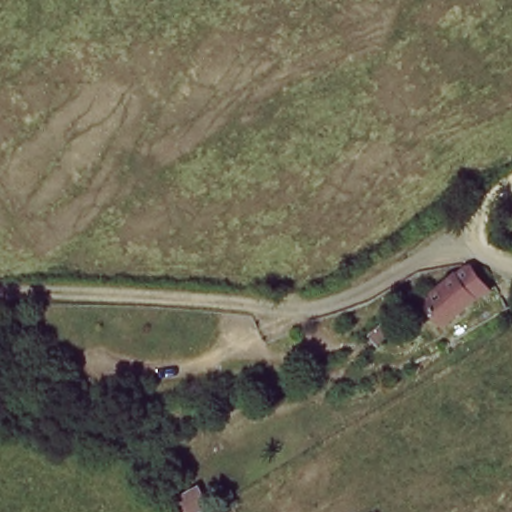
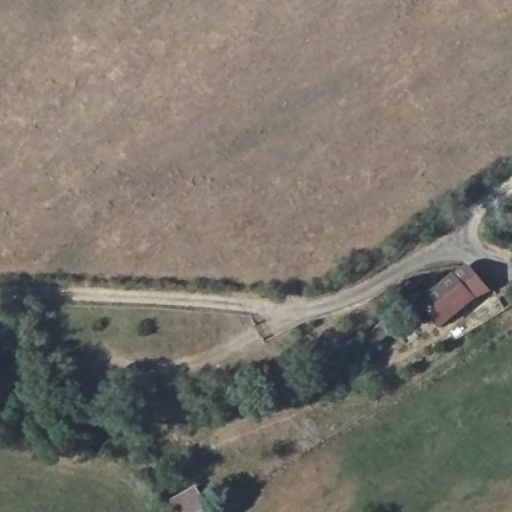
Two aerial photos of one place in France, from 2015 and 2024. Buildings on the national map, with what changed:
unchanged [(494,288),(442,328),(420,300),(473,260),(494,288)]

